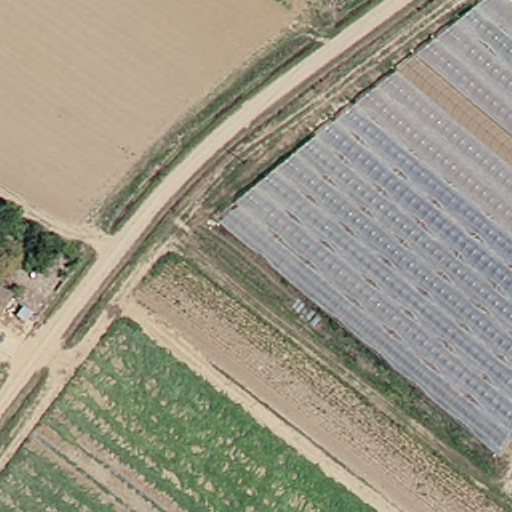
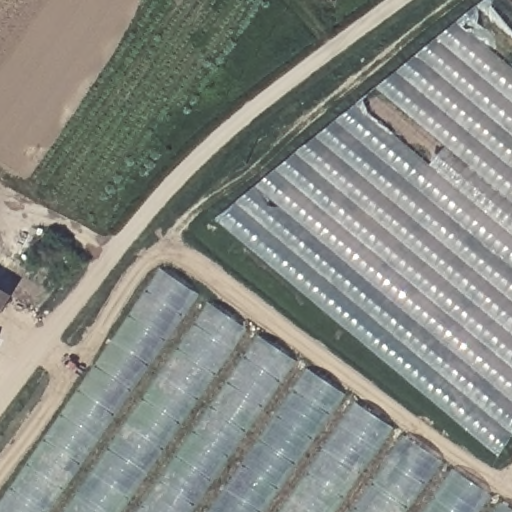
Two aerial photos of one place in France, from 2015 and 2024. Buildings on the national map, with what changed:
unchanged [(207,215),(477,0),(506,0),(512,5),(512,422),(492,451),(207,215)]
new [(506,512),(0,512),(0,509),(162,274),(506,512)]
unchanged [(0,325),(0,297),(13,305),(0,325)]

